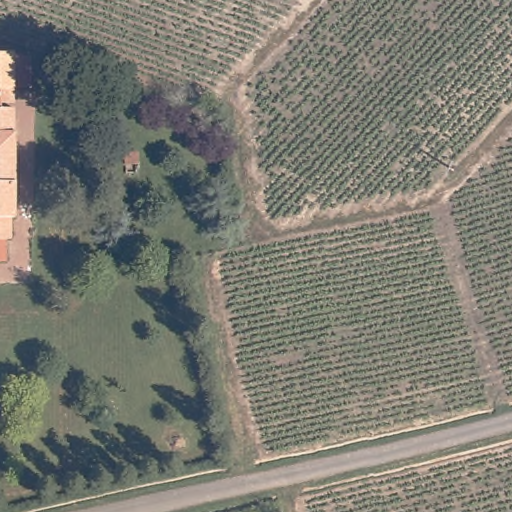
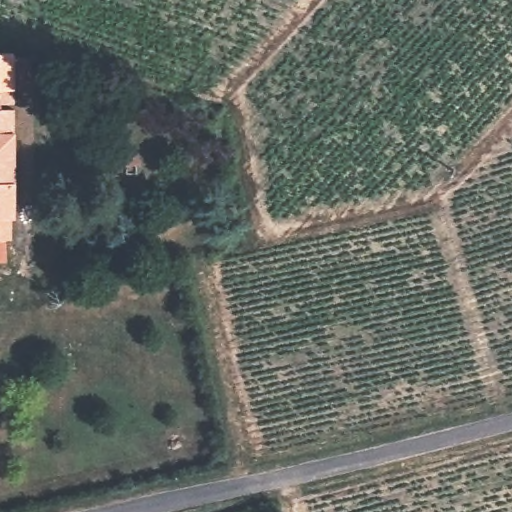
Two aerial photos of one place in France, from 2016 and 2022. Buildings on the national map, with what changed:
unchanged [(13,86),(13,106),(14,171),(14,211),(11,211),(11,235),(6,235),(6,244),(6,260),(0,260),(0,49),(14,49),(13,86)]

